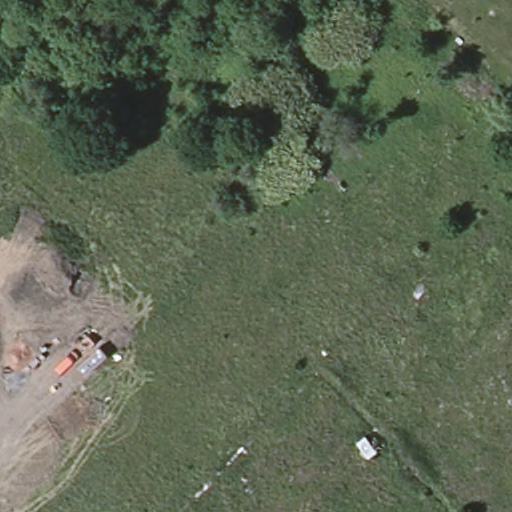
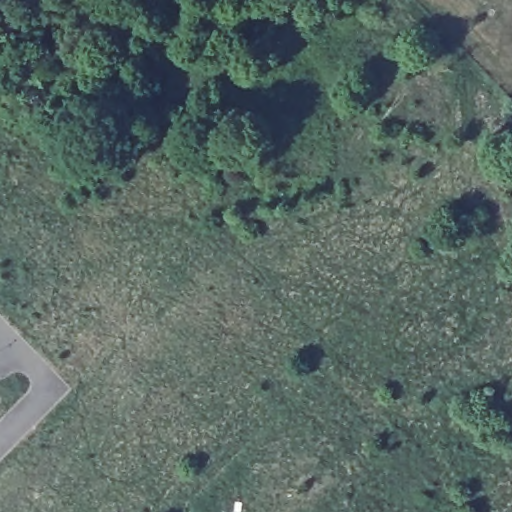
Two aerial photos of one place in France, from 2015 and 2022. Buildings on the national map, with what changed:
[]

